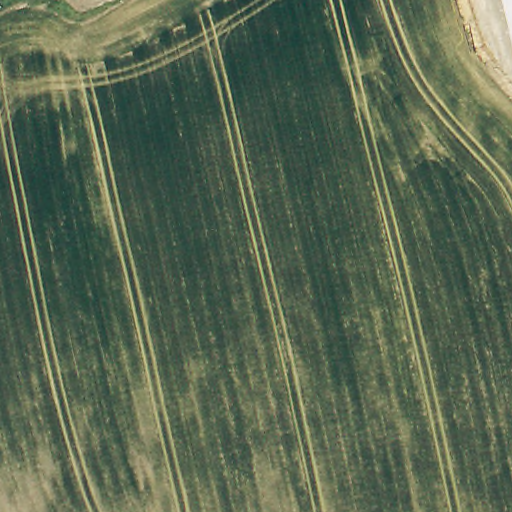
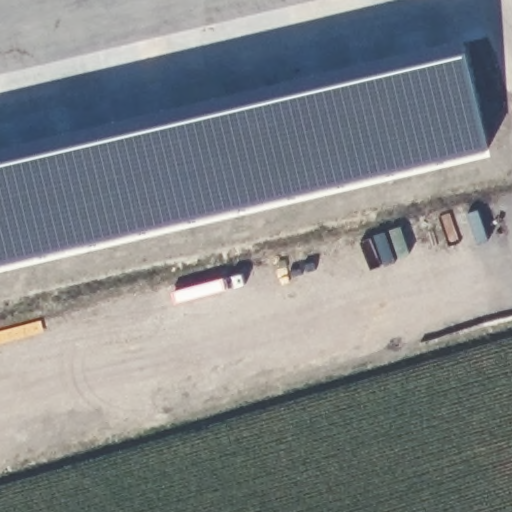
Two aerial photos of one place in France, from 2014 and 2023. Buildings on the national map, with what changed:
new [(462,47),(487,154),(0,266),(0,154),(462,47)]

